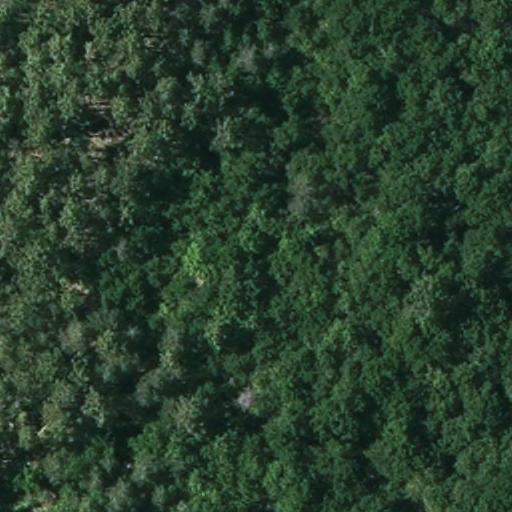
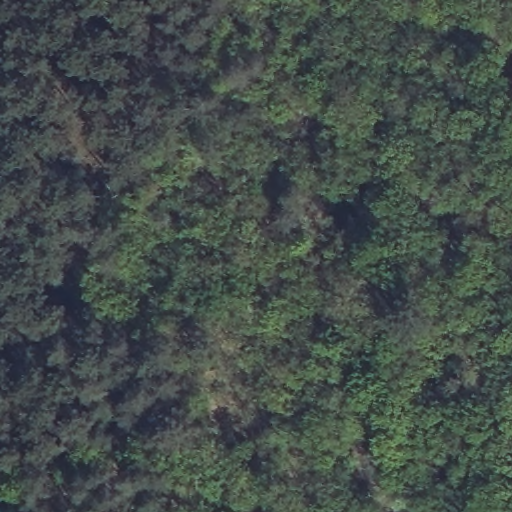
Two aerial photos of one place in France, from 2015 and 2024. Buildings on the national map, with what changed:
[]

